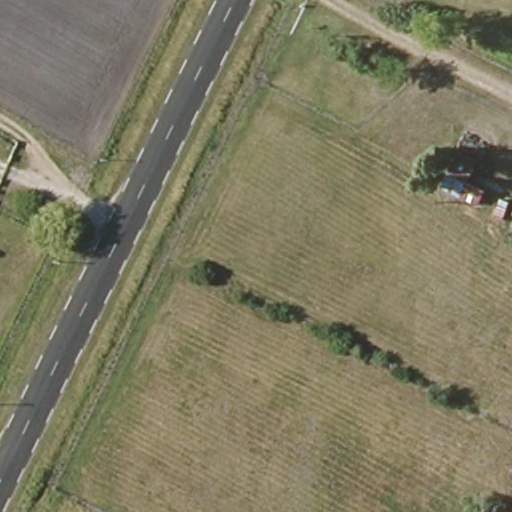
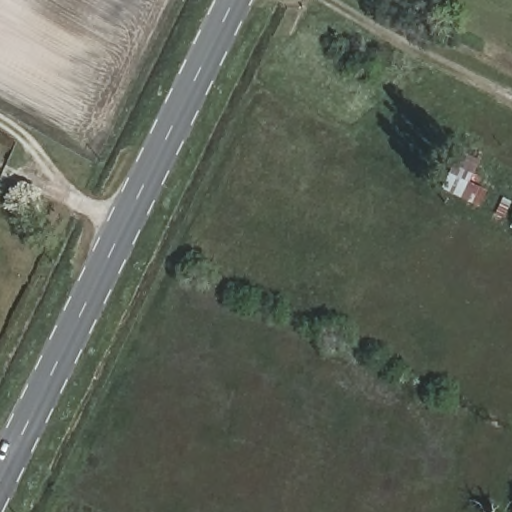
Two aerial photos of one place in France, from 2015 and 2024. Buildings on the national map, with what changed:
unchanged [(441,189),(462,150),(485,160),(476,179),(495,190),(482,207),(441,189)]

